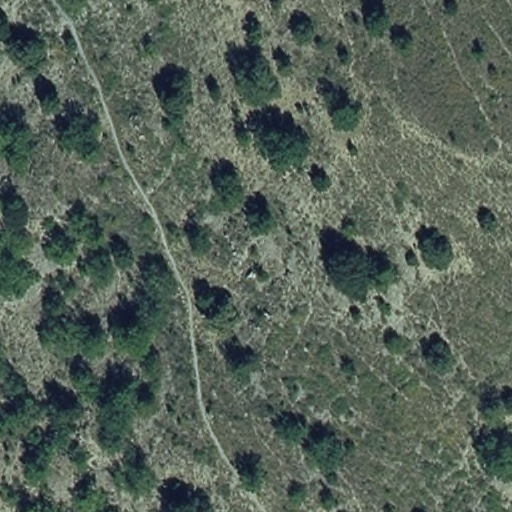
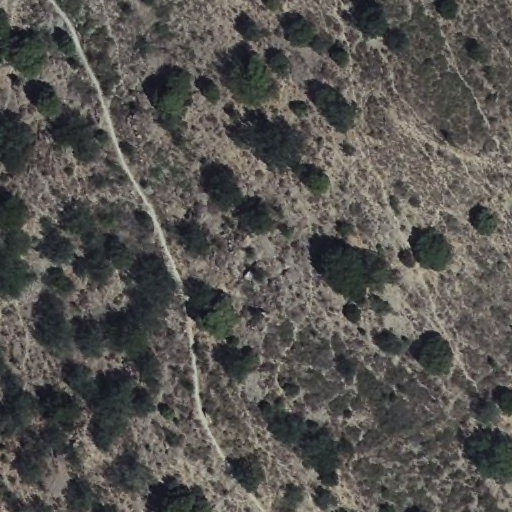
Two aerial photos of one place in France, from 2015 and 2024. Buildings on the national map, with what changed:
[]

